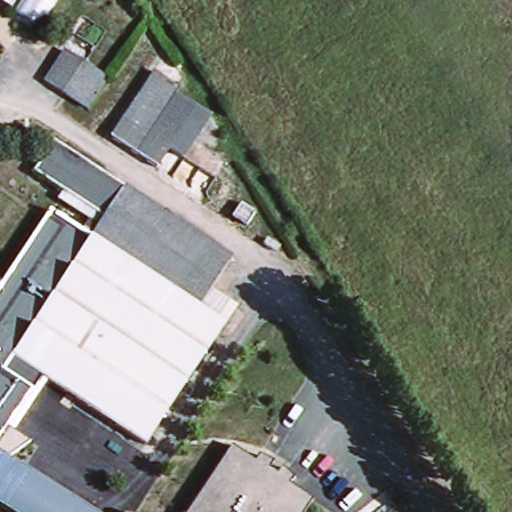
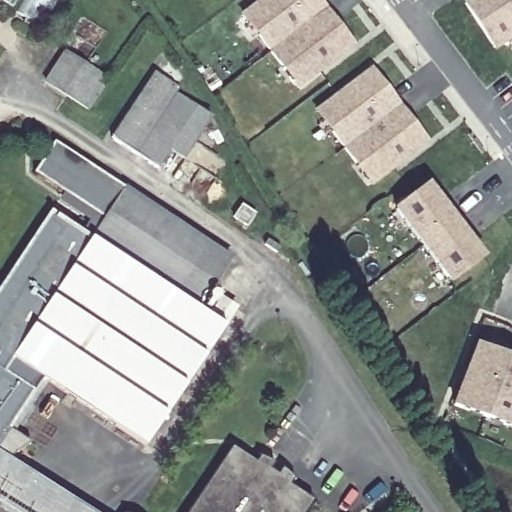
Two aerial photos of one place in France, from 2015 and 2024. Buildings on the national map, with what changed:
unchanged [(0,1),(0,0),(58,0),(41,29),(0,1)]
new [(320,0),(325,6),(269,48),(257,33),(242,13),(247,8),(258,0),(320,0)]
new [(464,3),(468,0),(512,0),(512,38),(494,49),(464,3)]
new [(281,64),(269,48),(325,6),(352,42),(302,80),(297,84),(281,64)]
unchanged [(102,74),(82,104),(56,88),(77,57),(102,74)]
new [(315,111),(372,67),(429,141),(371,186),(315,111)]
unchanged [(182,88),(180,90),(216,115),(190,156),(176,148),(163,169),(115,137),(157,71),(182,88)]
unchanged [(95,238),(109,217),(37,171),(57,140),(210,241),(177,292),(197,305),(202,309),(216,286),(232,298),(219,319),(225,324),(148,444),(47,376),(14,427),(36,441),(13,458),(0,450),(0,293),(55,210),(95,238)]
new [(450,284),(393,209),(429,182),(485,256),(450,284)]
unchanged [(253,213),(246,224),(232,217),(240,204),(253,213)]
unchanged [(231,255),(197,305),(177,292),(210,241),(231,255)]
new [(452,405),(475,344),(512,357),(512,429),(452,405)]
unchanged [(237,444),(261,461),(264,456),(263,454),(267,455),(273,457),(276,459),(279,461),(275,467),(282,472),(287,466),(290,468),(292,471),(296,474),(299,478),(297,478),(294,483),(317,499),(309,512),(192,512),(237,444)]
unchanged [(29,467),(5,504),(0,501),(0,450),(13,458),(29,467)]
unchanged [(15,511),(5,504),(29,467),(99,512),(17,512),(15,511)]

